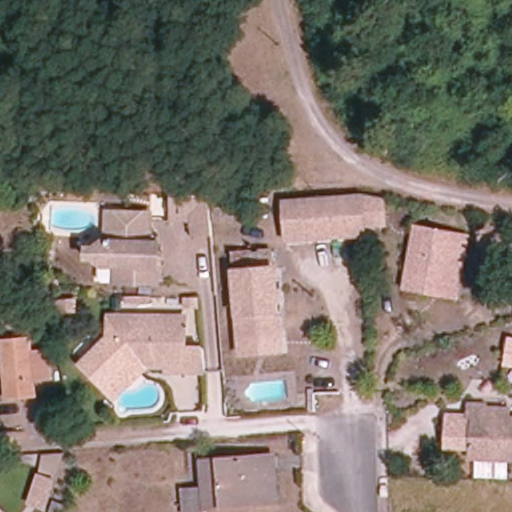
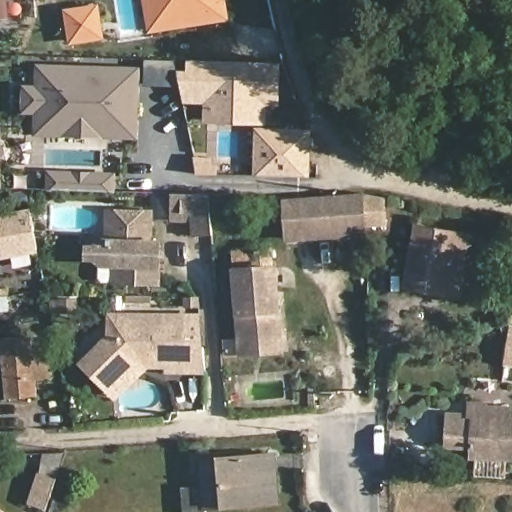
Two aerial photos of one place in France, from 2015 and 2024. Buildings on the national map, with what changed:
new [(150,35),(144,0),(227,0),(231,22),(150,35)]
new [(101,7),(105,39),(72,42),(66,12),(101,7)]
new [(145,59),(187,60),(280,64),(280,107),(268,107),(268,126),(203,123),(203,105),(183,104),(180,87),(144,86),(145,59)]
new [(141,67),(140,142),(38,137),(37,115),(25,115),(26,87),(36,87),(38,64),(141,67)]
new [(311,130),(310,177),(253,176),(255,127),(311,130)]
new [(0,187),(0,153),(1,187),(0,187)]
new [(117,174),(116,193),(50,192),(48,172),(117,174)]
unchanged [(185,196),(213,197),(217,237),(197,239),(195,225),(174,224),(175,195),(185,196)]
unchanged [(366,226),(365,207),(366,205),(368,195),(384,198),(385,225),(366,226)]
unchanged [(234,216),(235,202),(254,203),(254,217),(234,216)]
unchanged [(282,246),(283,204),(294,202),(305,205),(310,204),(309,247),(282,246)]
unchanged [(309,247),(310,204),(357,207),(365,207),(363,248),(309,247)]
new [(41,256),(4,261),(0,237),(0,214),(34,211),(41,256)]
unchanged [(90,249),(98,249),(106,242),(108,212),(126,213),(154,214),(152,242),(164,244),(161,285),(118,283),(120,266),(106,266),(98,259),(89,259),(90,249)]
unchanged [(454,252),(449,281),(410,275),(419,229),(468,237),(466,254),(454,252)]
unchanged [(242,351),(241,336),(240,331),(233,249),(271,246),(273,263),(275,263),(280,328),(280,332),(282,347),(242,351)]
unchanged [(458,297),(407,289),(410,275),(449,281),(454,252),(466,254),(458,297)]
unchanged [(114,396),(106,387),(83,362),(111,336),(111,313),(189,314),(188,345),(206,345),(208,370),(188,370),(171,370),(170,363),(149,363),(114,396)]
unchanged [(74,334),(59,333),(51,333),(51,322),(59,322),(74,322),(74,334)]
unchanged [(9,397),(4,337),(31,336),(32,350),(45,350),(46,372),(34,373),(36,395),(9,397)]
unchanged [(474,458),(474,450),(447,447),(449,416),(470,417),(470,405),(487,405),(487,407),(511,408),(511,418),(512,419),(512,458),(474,458)]
unchanged [(203,510),(203,512),(180,512),(180,490),(201,488),(201,478),(201,461),(218,460),(272,456),(275,506),(241,507),(221,508),(203,510)]
unchanged [(45,488),(61,495),(55,512),(36,512),(45,488)]

